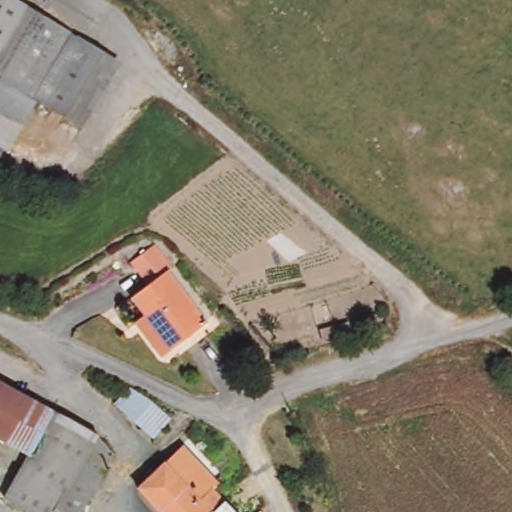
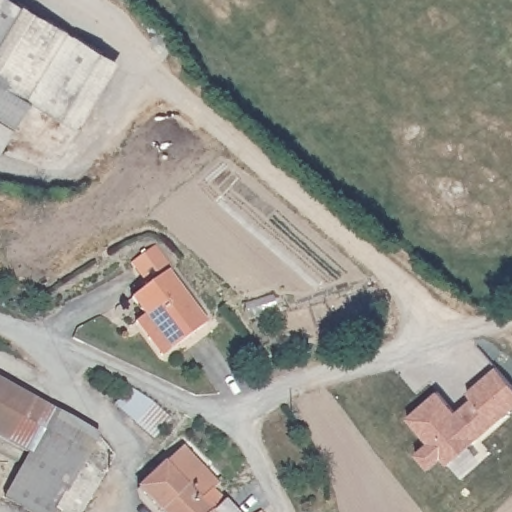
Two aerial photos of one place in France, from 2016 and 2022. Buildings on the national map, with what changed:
unchanged [(126,59),(87,124),(42,97),(13,147),(0,139),(0,0),(28,0),(76,29),(126,59)]
unchanged [(137,293),(154,281),(136,257),(161,240),(179,264),(175,267),(212,318),(176,345),(167,353),(140,318),(150,311),(137,293)]
new [(472,400),(467,393),(483,379),(496,368),(512,387),(512,410),(511,411),(447,465),(442,458),(428,469),(416,454),(428,443),(407,418),(437,392),(456,413),(472,400)]
unchanged [(60,413),(35,456),(0,437),(0,380),(60,413)]
unchanged [(131,388),(152,401),(172,420),(155,439),(116,405),(131,388)]
unchanged [(87,512),(35,512),(10,498),(35,456),(60,413),(104,438),(121,455),(87,512)]
unchanged [(187,446),(224,485),(218,490),(206,502),(215,512),(164,512),(164,511),(164,510),(144,489),(187,446)]
unchanged [(206,502),(218,490),(230,502),(240,512),(215,512),(206,502)]
unchanged [(266,511),(266,512),(265,512),(266,511)]

